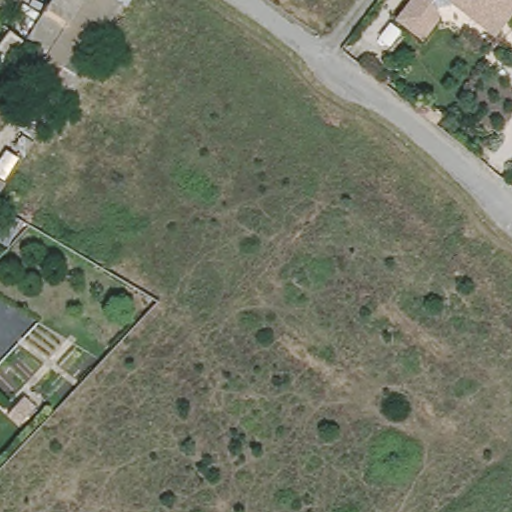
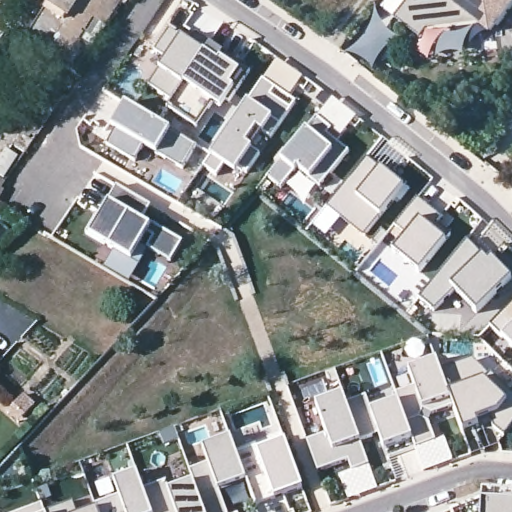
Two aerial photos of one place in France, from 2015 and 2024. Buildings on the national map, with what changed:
unchanged [(37,58),(23,51),(16,59),(12,57),(0,50),(0,47),(18,20),(35,31),(54,0),(81,0),(47,54),(42,52),(37,58)]
unchanged [(131,2),(84,74),(47,54),(81,0),(132,0),(131,2)]
unchanged [(395,18),(407,0),(512,0),(512,2),(492,32),(448,2),(444,5),(435,5),(435,17),(422,37),(410,27),(395,18)]
new [(435,17),(435,5),(444,5),(448,2),(482,24),(426,30),(435,17)]
new [(172,102),(150,87),(167,60),(157,52),(171,31),(191,45),(198,35),(211,45),(205,55),(172,102)]
new [(264,133),(258,128),(246,146),(260,156),(248,173),(241,167),(236,172),(226,165),(217,176),(206,167),(213,156),(249,103),(265,81),(297,102),(272,139),(264,133)]
new [(185,168),(159,153),(147,147),(137,161),(110,145),(119,130),(114,127),(127,104),(169,130),(198,147),(185,168)]
new [(311,179),(300,169),(283,189),(271,178),(284,161),(317,120),(332,131),(328,136),(349,153),(322,188),(311,179)]
new [(380,170),(404,189),(380,218),(364,237),(327,208),(367,158),(380,170)]
new [(97,214),(100,217),(108,204),(107,203),(116,186),(150,206),(141,222),(149,226),(151,224),(182,243),(170,263),(146,249),(153,238),(146,234),(130,261),(85,234),(97,214)]
unchanged [(0,192),(2,193),(0,196),(0,192)]
new [(442,217),(437,225),(449,235),(445,242),(419,273),(394,252),(407,236),(395,226),(417,199),(442,217)]
unchanged [(0,220),(8,213),(27,225),(5,248),(0,244),(0,220)]
new [(457,290),(435,311),(421,300),(469,242),(483,258),(489,264),(493,260),(512,278),(477,312),(457,290)]
new [(435,441),(415,448),(412,439),(398,401),(395,394),(414,387),(408,371),(436,360),(453,407),(432,414),(429,422),(435,441)]
new [(492,415),(477,422),(479,425),(465,431),(453,407),(440,373),(475,361),(490,377),(492,375),(512,392),(512,428),(506,436),(497,428),(492,415)]
new [(340,378),(335,380),(330,377),(328,372),(336,368),(340,378)]
new [(324,436),(313,406),(343,396),(346,404),(368,466),(352,472),(348,462),(316,473),(304,443),(324,436)]
new [(360,442),(346,404),(366,397),(371,412),(398,401),(412,439),(384,450),(379,436),(373,438),(360,442)]
new [(203,449),(231,439),(246,481),(219,491),(226,512),(204,512),(194,482),(189,471),(208,465),(203,449)]
new [(285,441),(304,489),(263,504),(258,489),(266,486),(254,453),(285,441)]
new [(114,483),(137,474),(143,491),(151,512),(98,512),(97,509),(96,506),(120,497),(114,483)]
new [(169,491),(194,482),(204,512),(151,512),(143,491),(166,482),(169,491)]
new [(485,496),(512,498),(512,512),(484,512),(484,509),(485,496)]
new [(77,512),(45,512),(73,502),(77,512)]
new [(45,512),(24,512),(42,506),(45,512)]
new [(98,512),(89,512),(97,509),(98,512)]

